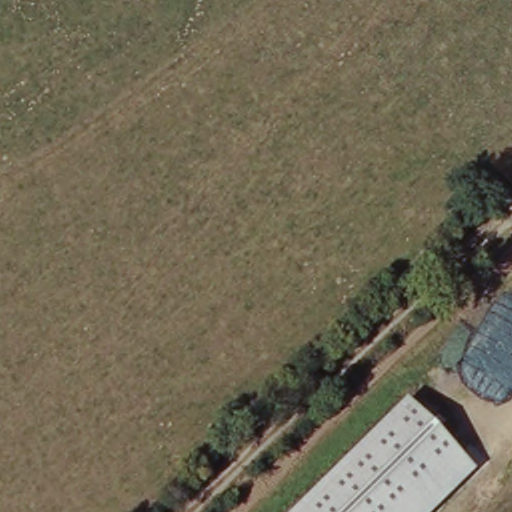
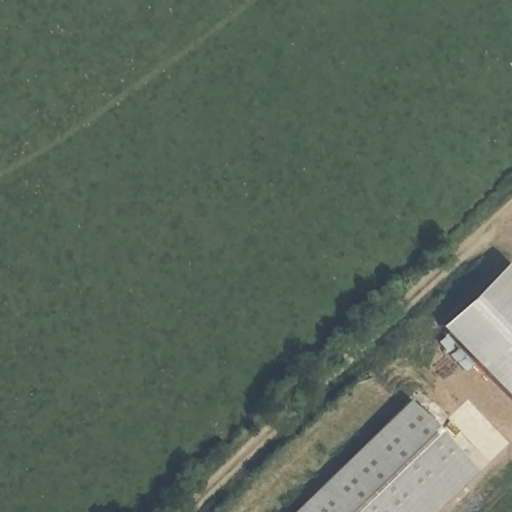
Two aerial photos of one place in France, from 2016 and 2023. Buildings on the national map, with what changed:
new [(512,404),(436,329),(502,263),(512,274),(512,404)]
unchanged [(406,401),(475,472),(434,512),(292,512),(406,401)]

